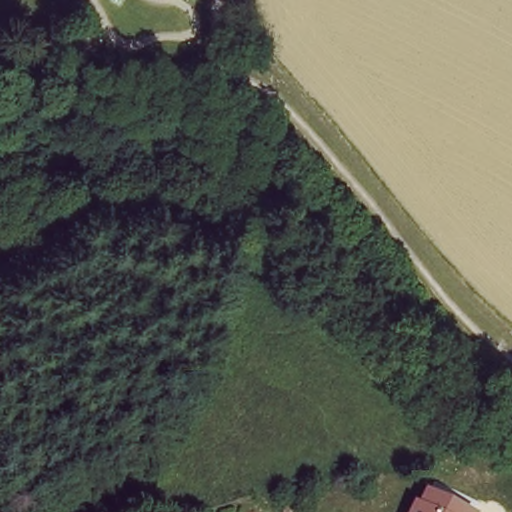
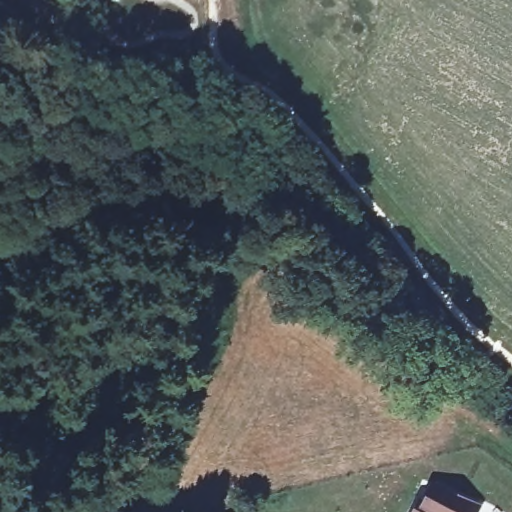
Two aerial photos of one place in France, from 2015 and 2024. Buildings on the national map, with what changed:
unchanged [(408,512),(412,505),(417,506),(424,493),(465,512),(408,512)]

